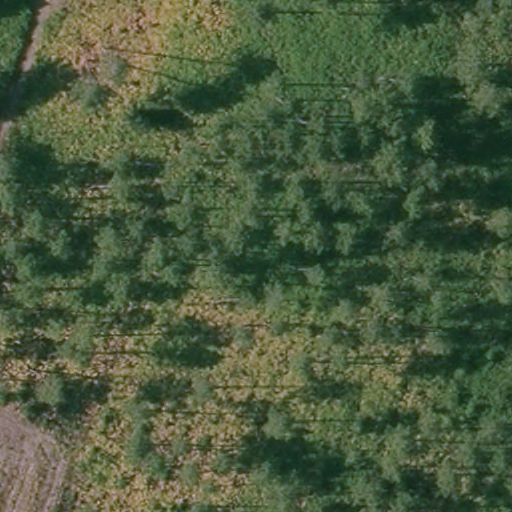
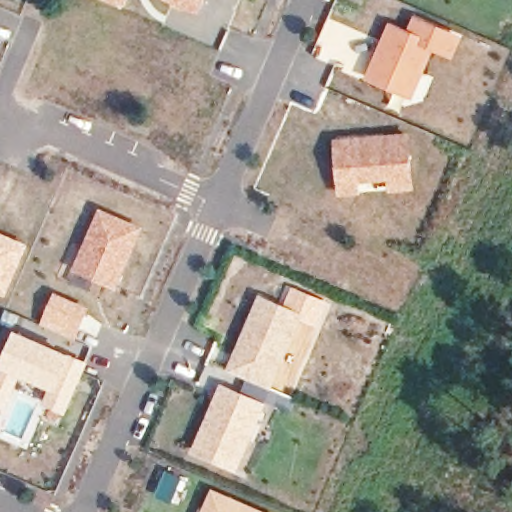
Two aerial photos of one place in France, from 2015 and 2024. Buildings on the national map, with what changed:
new [(124,8),(104,0),(127,0),(124,8)]
new [(198,16),(160,0),(205,0),(198,16)]
new [(408,29),(412,17),(463,37),(455,58),(434,50),(412,100),(365,81),(389,22),(408,29)]
new [(410,133),(415,190),(390,194),(388,181),(361,183),(362,194),(338,196),(334,139),(410,133)]
new [(139,228),(115,286),(77,271),(104,212),(139,228)]
new [(7,297),(0,293),(0,232),(30,246),(7,297)]
new [(90,308),(76,340),(41,325),(55,293),(90,308)]
new [(302,312),(271,387),(227,368),(260,295),(302,312)]
new [(89,362),(66,416),(44,407),(53,390),(19,376),(5,411),(0,409),(0,366),(15,331),(70,353),(89,362)]
new [(265,403),(238,471),(192,452),(221,382),(265,403)]
new [(202,512),(213,488),(268,512),(202,512)]

